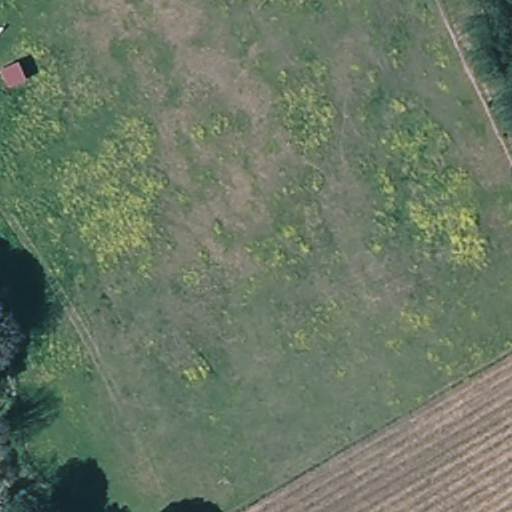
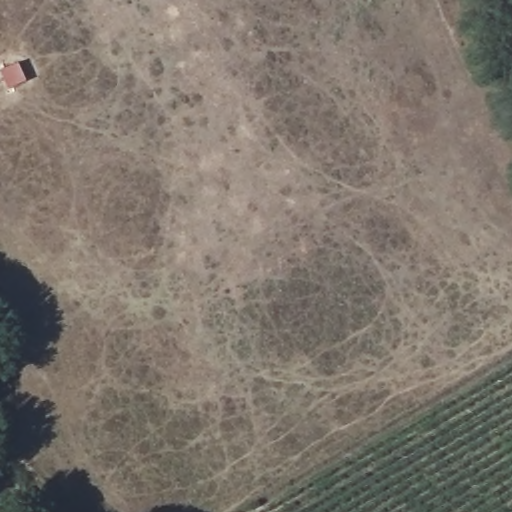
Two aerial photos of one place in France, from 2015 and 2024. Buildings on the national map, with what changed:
unchanged [(21,47),(28,68),(7,75),(1,56),(21,47)]

